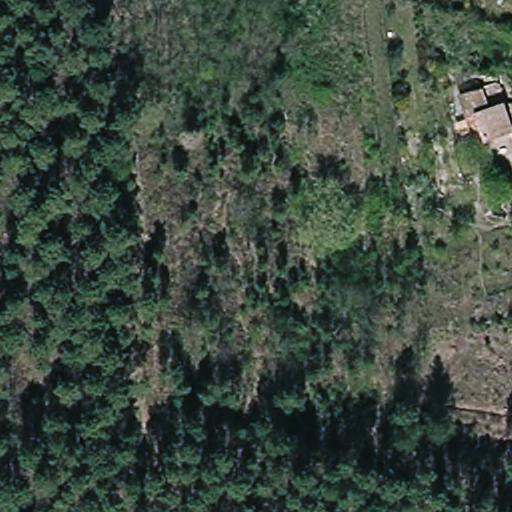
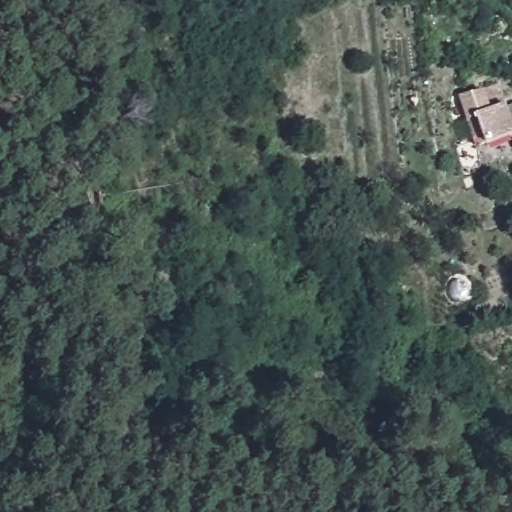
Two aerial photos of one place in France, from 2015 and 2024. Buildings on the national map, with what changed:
unchanged [(467,117),(457,91),(481,85),(490,110),(507,105),(507,107),(512,106),(512,135),(490,142),(478,146),(467,117)]

